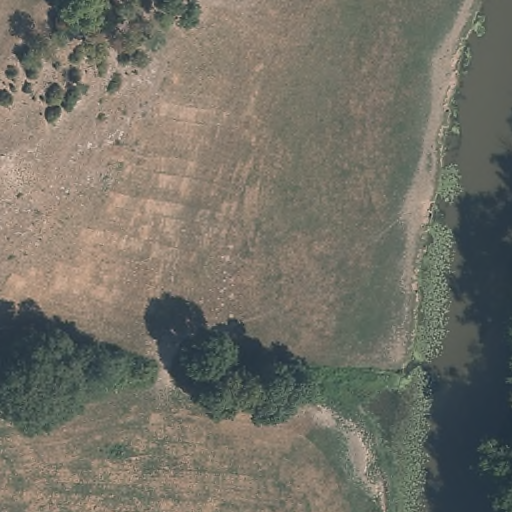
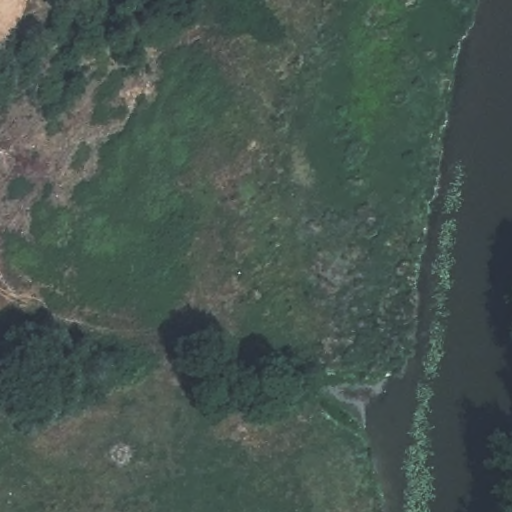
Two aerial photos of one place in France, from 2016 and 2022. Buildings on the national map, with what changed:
[]

